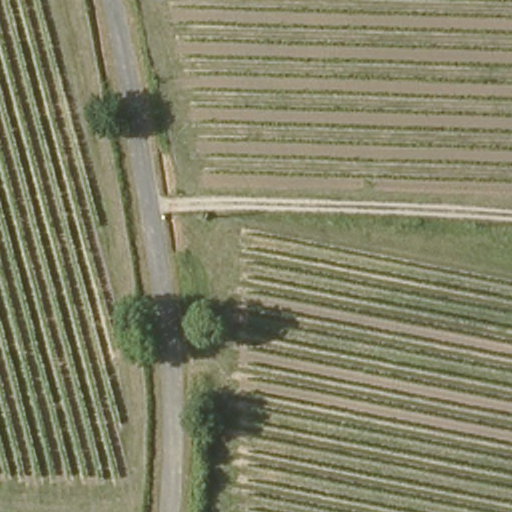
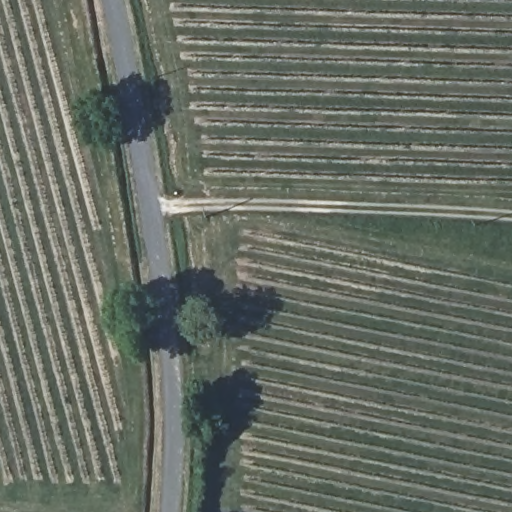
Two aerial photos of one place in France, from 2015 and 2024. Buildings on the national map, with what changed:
[]

